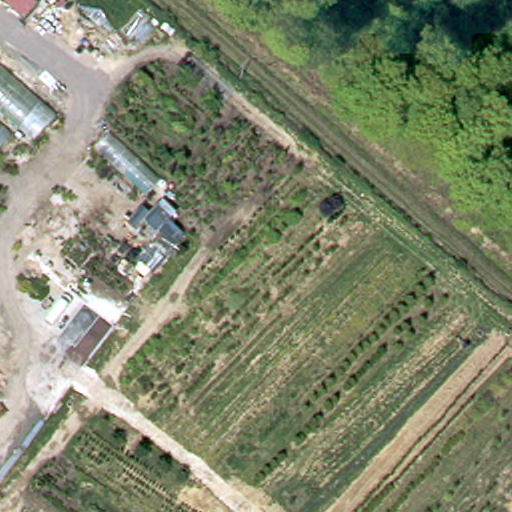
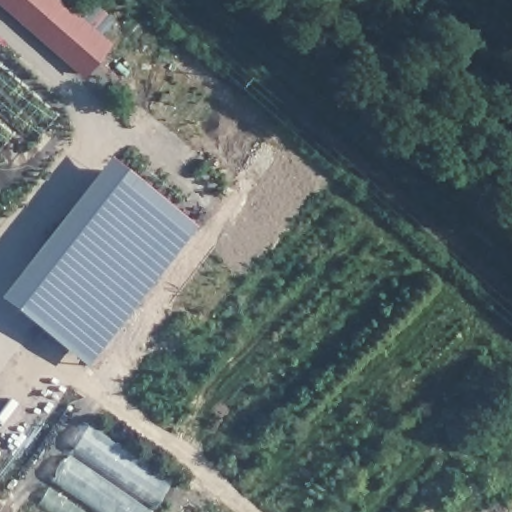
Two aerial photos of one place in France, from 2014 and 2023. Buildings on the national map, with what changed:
unchanged [(0,2),(0,0),(44,0),(22,22),(0,2)]
new [(95,1),(113,19),(100,33),(110,42),(82,76),(22,22),(44,0),(60,0),(80,16),(95,1)]
unchanged [(58,116),(34,142),(18,129),(0,148),(0,65),(58,116)]
new [(134,179),(205,235),(127,333),(57,278),(134,179)]
new [(57,278),(127,333),(97,372),(25,317),(57,278)]
new [(150,512),(41,512),(35,507),(90,425),(172,480),(150,512)]

